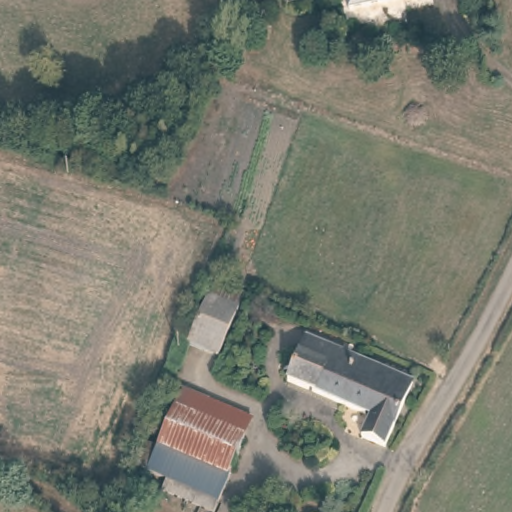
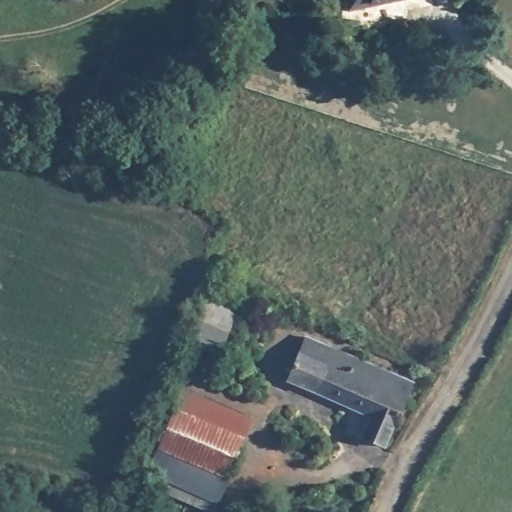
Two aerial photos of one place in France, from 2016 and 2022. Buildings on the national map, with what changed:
unchanged [(346,0),(390,0),(348,8),(346,0)]
unchanged [(189,340),(209,292),(215,276),(247,290),(240,307),(221,354),(189,340)]
unchanged [(384,449),(362,439),(369,420),(284,385),(305,338),(412,382),(384,449)]
unchanged [(156,447),(180,387),(255,417),(228,477),(156,447)]
unchanged [(212,511),(174,495),(159,489),(163,479),(133,466),(143,441),(156,447),(228,477),(212,511)]

